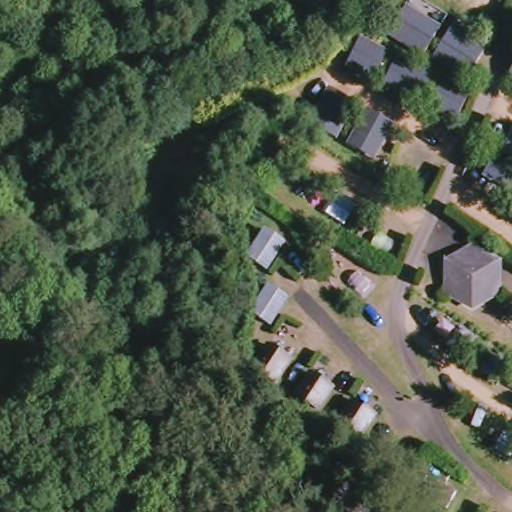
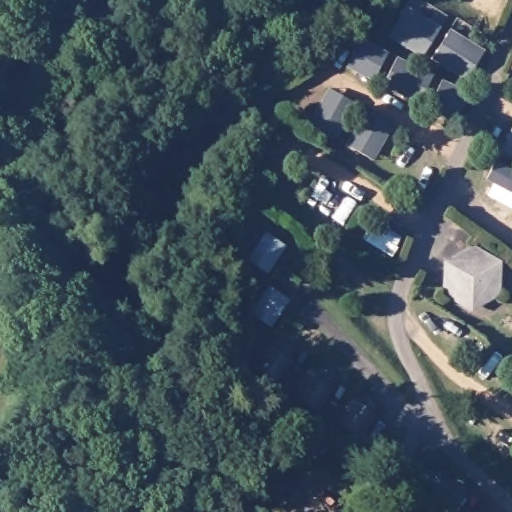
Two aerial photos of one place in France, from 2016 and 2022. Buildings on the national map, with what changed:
unchanged [(382,82),(354,74),(367,48),(395,61),(382,82)]
unchanged [(472,86),(434,67),(442,52),(478,68),(472,86)]
unchanged [(360,107),(340,142),(312,124),(330,91),(360,107)]
unchanged [(460,128),(435,115),(445,92),(470,111),(460,128)]
unchanged [(385,161),(357,154),(376,119),(402,129),(385,161)]
unchanged [(499,157),(512,164),(512,193),(489,181),(499,157)]
unchanged [(272,283),(246,268),(261,235),(292,251),(272,283)]
unchanged [(447,291),(448,260),(479,245),(504,264),(502,297),(474,310),(447,291)]
unchanged [(275,336),(249,318),(270,292),(295,304),(275,336)]
unchanged [(282,391),(252,382),(267,352),(302,366),(282,391)]
unchanged [(325,420),(291,410),(310,371),(343,391),(325,420)]
unchanged [(368,440),(340,428),(357,400),(380,420),(368,440)]

